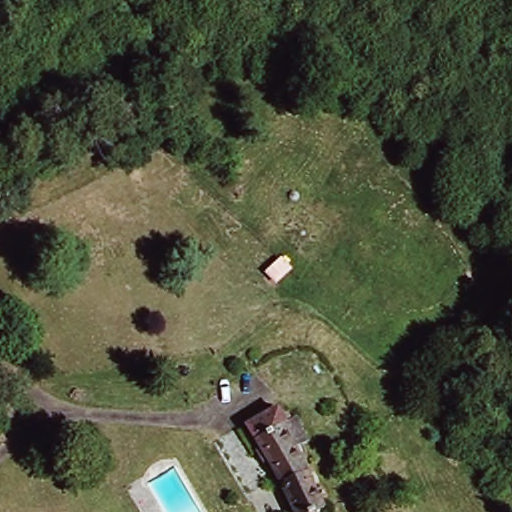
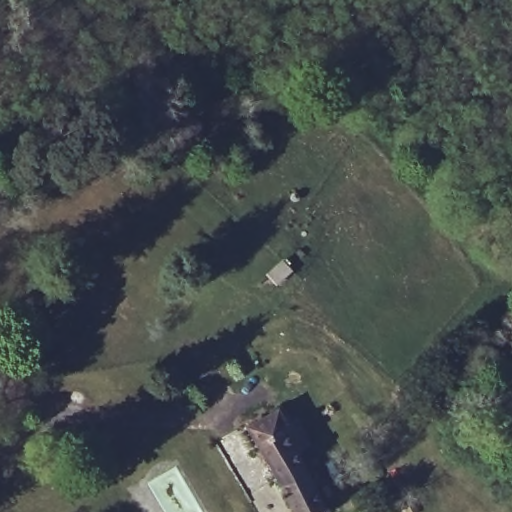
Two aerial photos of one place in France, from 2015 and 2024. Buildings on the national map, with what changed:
unchanged [(267,412),(275,425),(287,418),(300,441),(288,448),(320,504),(307,512),(288,512),(242,429),(267,412)]

